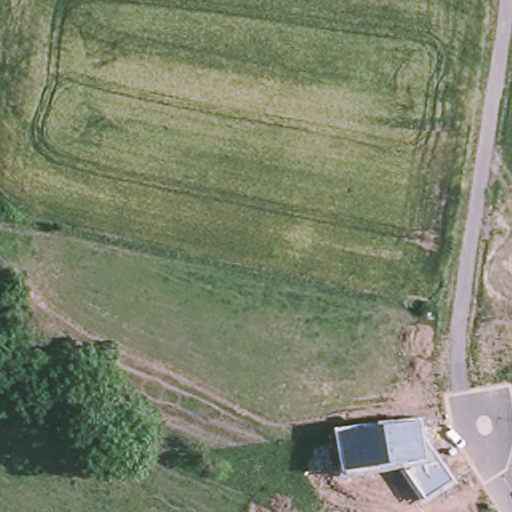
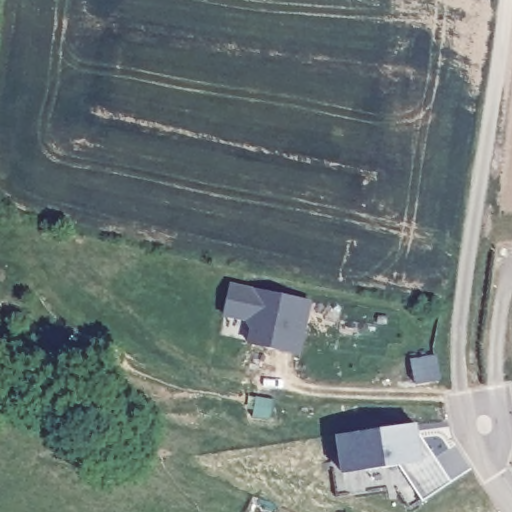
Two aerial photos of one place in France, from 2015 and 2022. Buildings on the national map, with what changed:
new [(312,301),(301,355),(247,344),(250,329),(246,322),(223,317),(230,283),(312,301)]
new [(435,356),(439,381),(415,385),(410,360),(435,356)]
unchanged [(415,432),(448,483),(450,484),(420,503),(420,502),(397,467),(341,476),(335,437),(414,426),(415,432)]

